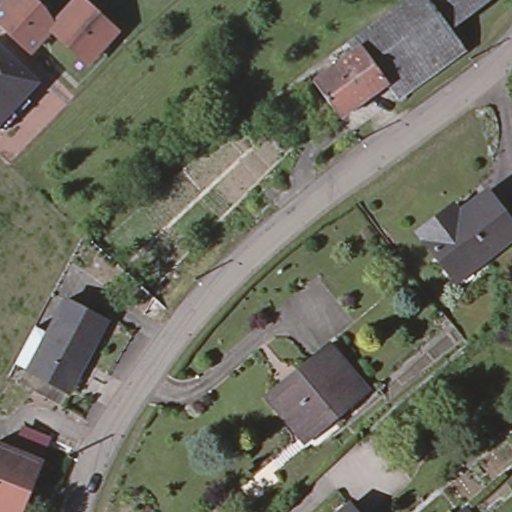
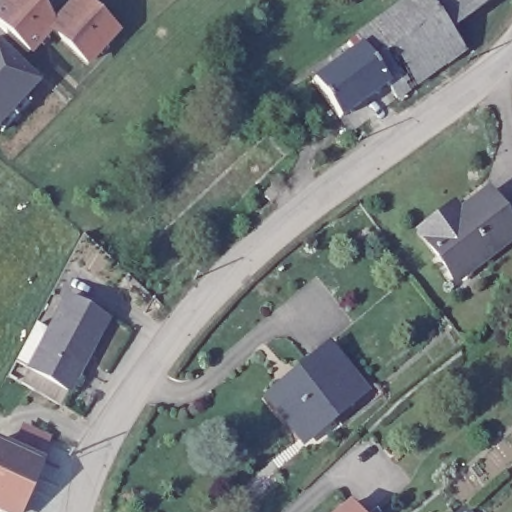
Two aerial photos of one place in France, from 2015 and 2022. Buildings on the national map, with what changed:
unchanged [(40,7),(51,23),(73,0),(83,0),(89,6),(115,29),(86,60),(61,37),(49,26),(26,51),(20,45),(0,27),(0,4),(4,0),(33,0),(40,7)]
unchanged [(355,37),(406,0),(429,0),(450,28),(463,47),(398,96),(387,81),(389,80),(361,42),(360,43),(355,37)]
unchanged [(450,28),(429,0),(486,0),(450,28)]
unchanged [(313,78),(360,43),(361,42),(389,80),(387,81),(342,115),(313,78)]
unchanged [(0,49),(27,74),(30,77),(18,90),(26,98),(0,126),(0,49)]
unchanged [(438,220),(443,228),(488,194),(512,226),(512,239),(475,268),(471,264),(452,279),(419,235),(438,220)]
unchanged [(30,369),(40,351),(38,349),(65,298),(105,319),(68,389),(30,369)]
unchanged [(325,348),(354,385),(363,396),(346,410),(343,407),(302,440),(266,396),(322,351),(325,348)]
unchanged [(20,512),(0,512),(0,449),(40,465),(20,512)]
unchanged [(472,512),(449,512),(462,500),(472,512)]
unchanged [(354,512),(340,512),(348,505),(354,512)]

